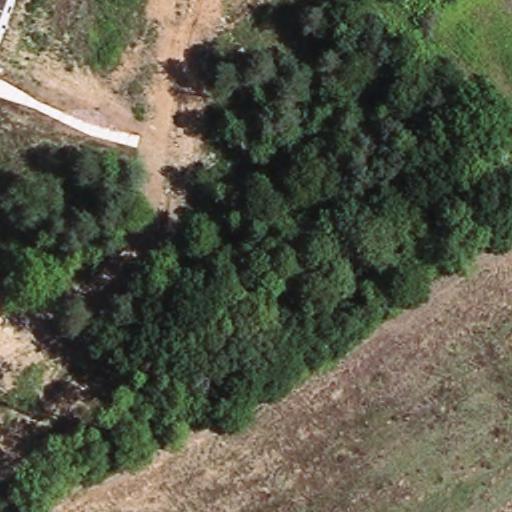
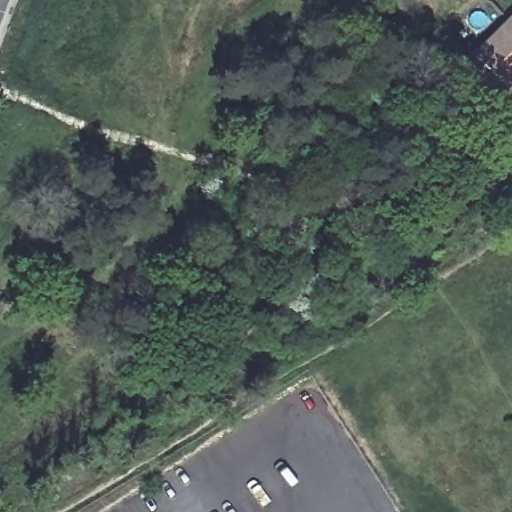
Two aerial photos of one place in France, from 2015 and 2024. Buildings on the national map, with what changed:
new [(512,75),(503,84),(471,52),(512,11),(512,75)]

